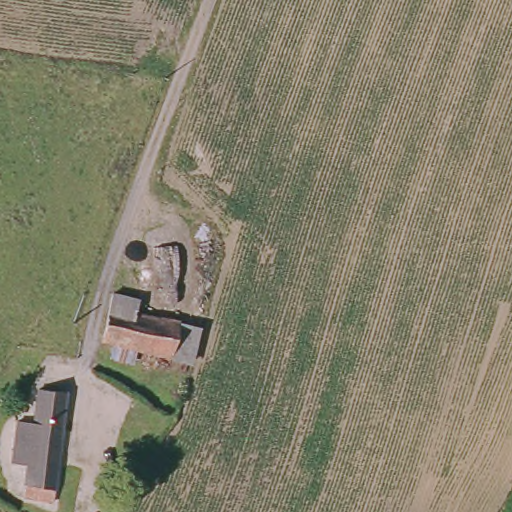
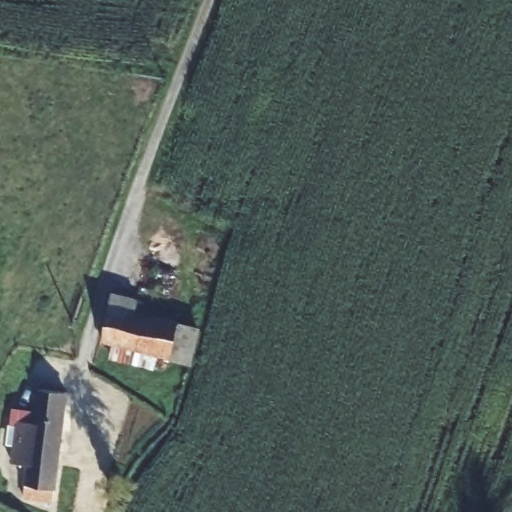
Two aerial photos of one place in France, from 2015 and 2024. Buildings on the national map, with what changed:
unchanged [(192,354),(179,354),(178,359),(102,345),(108,313),(109,305),(138,309),(138,319),(194,329),(192,354)]
unchanged [(28,471),(29,439),(16,438),(18,406),(31,407),(32,386),(63,388),(58,482),(28,481),(28,471)]

